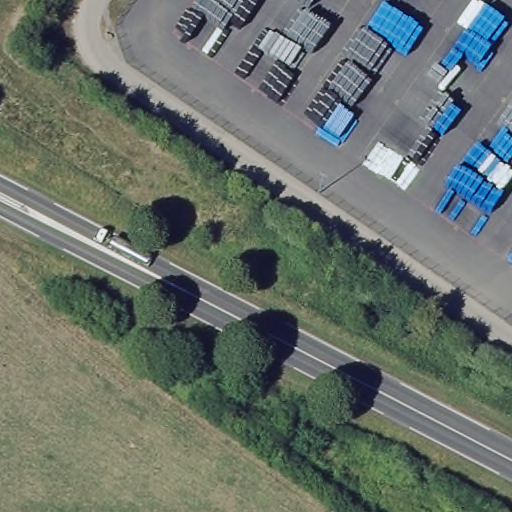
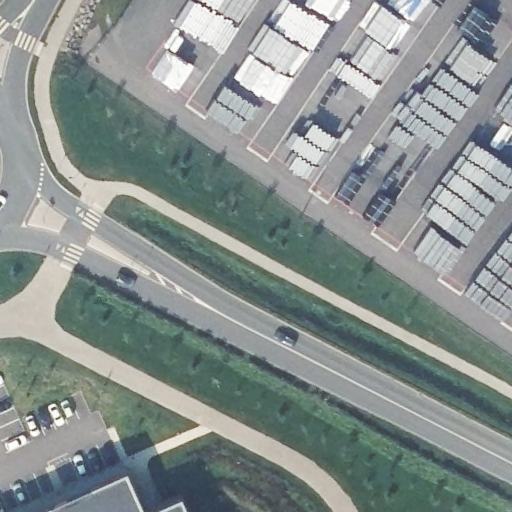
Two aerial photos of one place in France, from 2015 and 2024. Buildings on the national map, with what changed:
new [(145,511),(181,495),(189,512),(10,512),(122,460),(145,511)]

